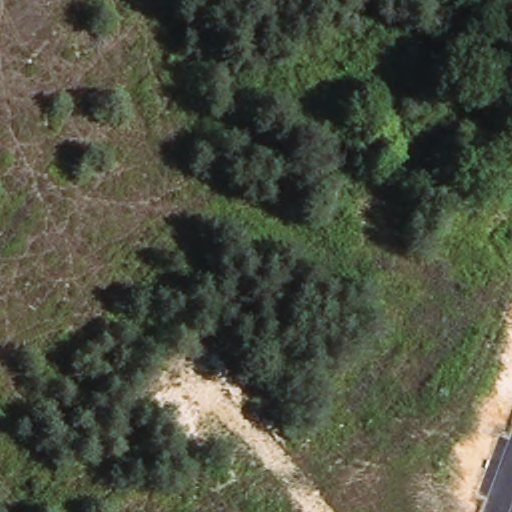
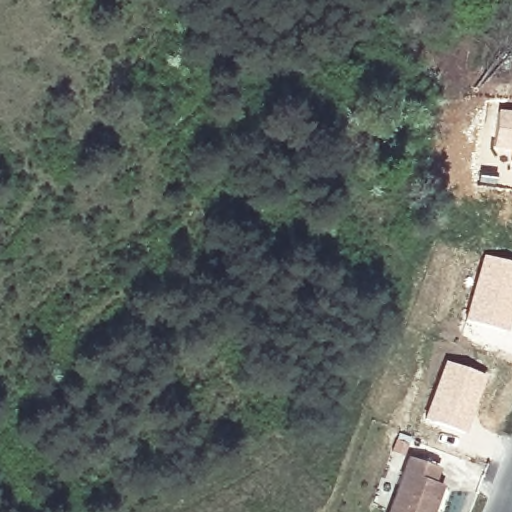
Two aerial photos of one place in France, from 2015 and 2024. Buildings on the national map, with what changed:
new [(498,108),(512,110),(512,169),(508,168),(509,152),(492,150),(498,108)]
new [(483,253),(512,262),(512,316),(507,332),(463,318),(483,253)]
new [(445,359),(488,376),(465,433),(423,417),(445,359)]
unchanged [(408,458),(440,467),(435,484),(442,487),(434,512),(388,512),(408,458)]

